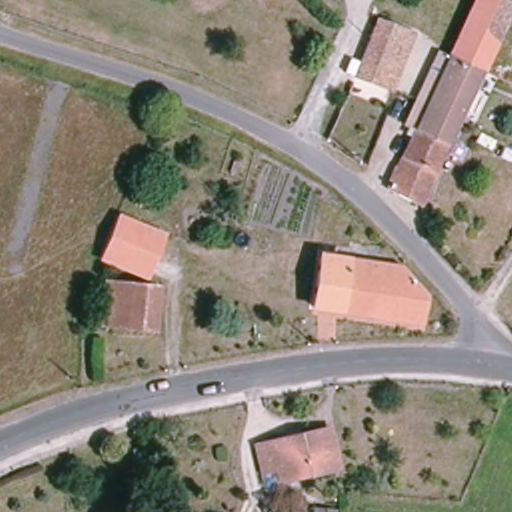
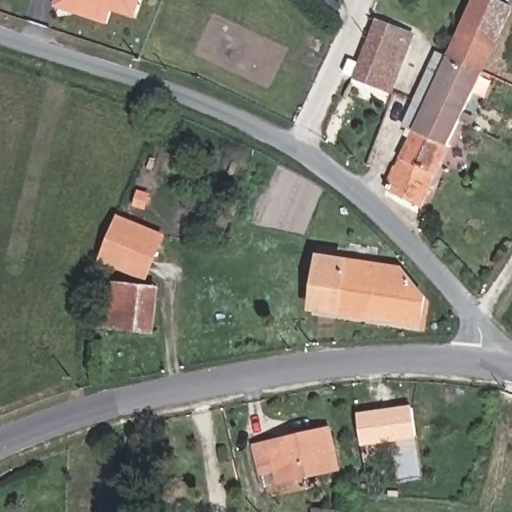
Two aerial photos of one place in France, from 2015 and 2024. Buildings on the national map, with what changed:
new [(142,0),(136,19),(112,11),(107,25),(54,7),(57,0),(142,0)]
unchanged [(471,6),(474,0),(504,0),(512,3),(512,9),(484,74),(447,57),(471,6)]
unchanged [(395,93),(352,76),(375,17),(417,31),(395,93)]
unchanged [(388,181),(447,57),(484,74),(430,200),(388,181)]
unchanged [(161,231),(155,272),(102,267),(109,224),(161,231)]
unchanged [(424,298),(419,328),(310,307),(319,258),(401,273),(424,298)]
unchanged [(163,281),(157,325),(115,320),(118,277),(163,281)]
new [(363,446),(358,413),(413,406),(418,438),(363,446)]
unchanged [(277,483),(274,468),(258,472),(252,444),(329,432),(339,472),(277,483)]
unchanged [(337,510),(336,512),(312,512),(312,507),(337,510)]

